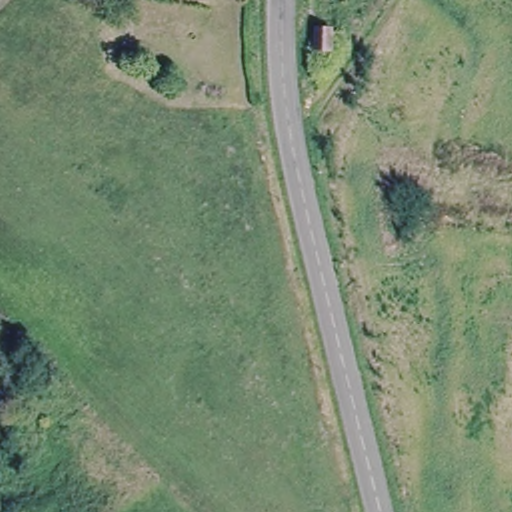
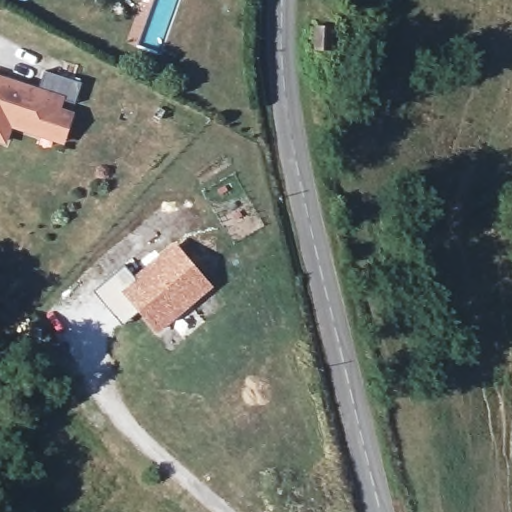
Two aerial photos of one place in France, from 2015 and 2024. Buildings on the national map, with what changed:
new [(310,45),(309,23),(328,22),(328,44),(310,45)]
new [(0,76),(39,89),(44,72),(80,84),(74,104),(64,101),(61,108),(74,112),(64,146),(10,130),(6,145),(0,143),(0,76)]
new [(133,276),(175,239),(214,286),(157,334),(139,311),(123,324),(94,289),(124,266),(133,276)]

